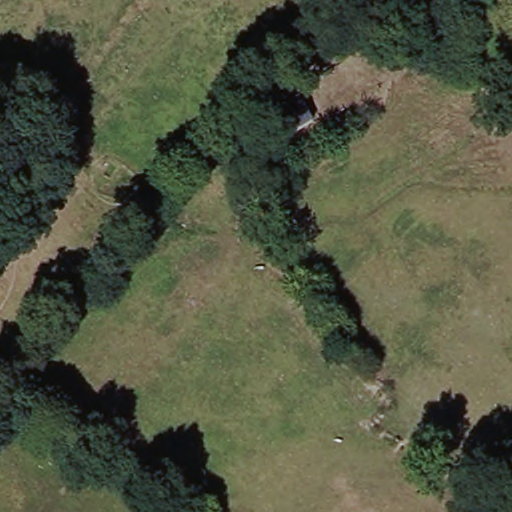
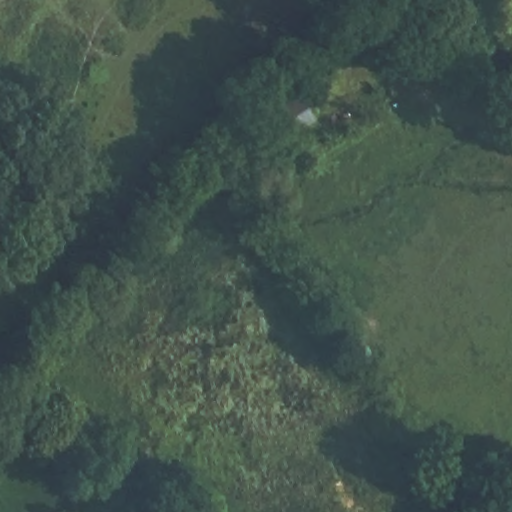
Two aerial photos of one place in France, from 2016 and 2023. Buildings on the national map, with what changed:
unchanged [(297,91),(311,114),(277,133),(264,109),(297,91)]
unchanged [(120,160),(126,165),(117,181),(110,176),(120,160)]

